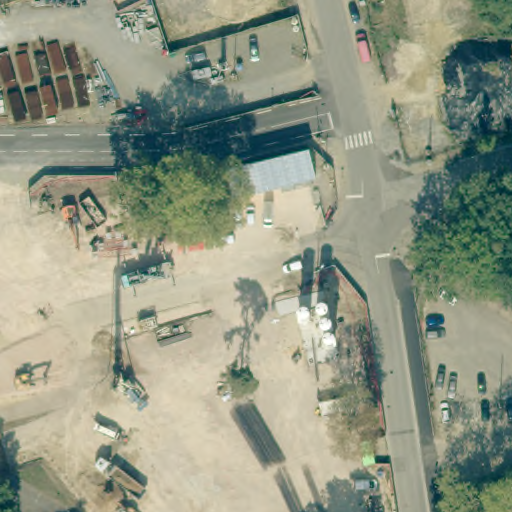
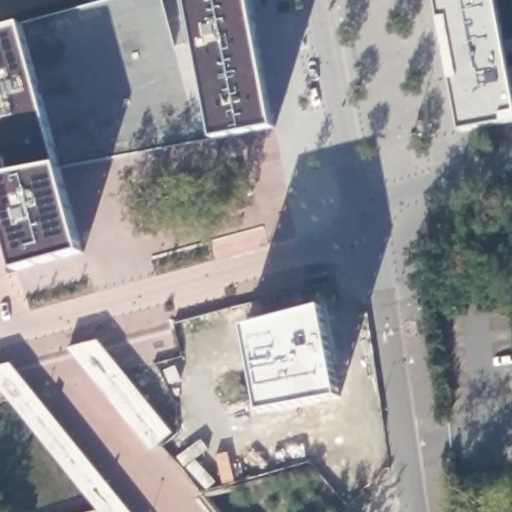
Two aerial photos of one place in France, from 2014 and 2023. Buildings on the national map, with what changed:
new [(276,127),(61,167),(85,252),(17,271),(0,211),(0,29),(106,0),(251,0),(276,127)]
new [(509,74),(512,74),(512,124),(461,134),(436,0),(495,0),(509,74)]
new [(150,451),(69,349),(97,339),(171,435),(150,451)]
new [(0,367),(12,363),(130,512),(99,512),(0,390),(0,367)]

